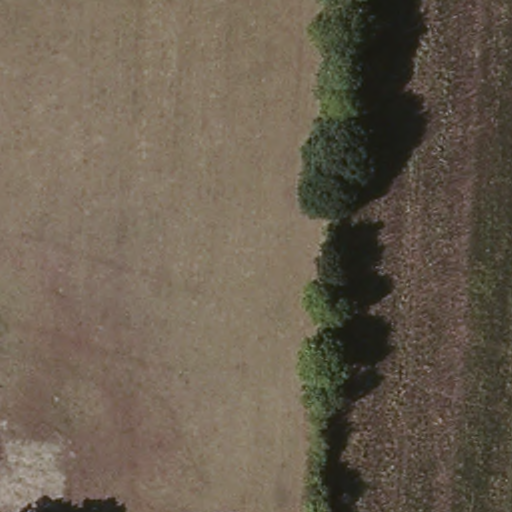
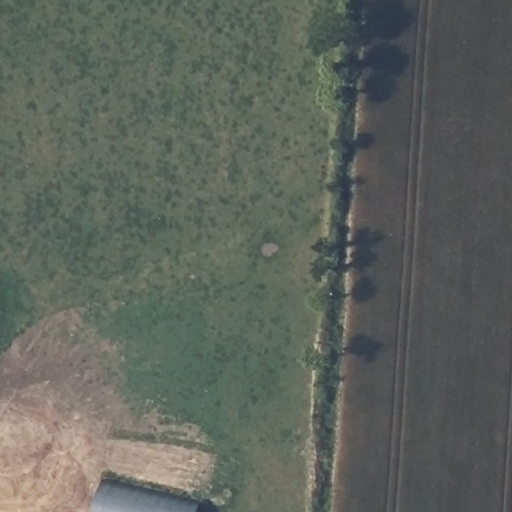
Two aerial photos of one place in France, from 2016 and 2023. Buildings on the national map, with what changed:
new [(205,503),(203,512),(97,512),(104,477),(205,503)]

